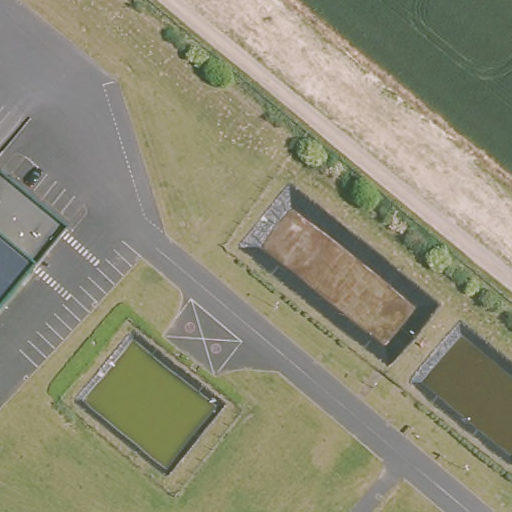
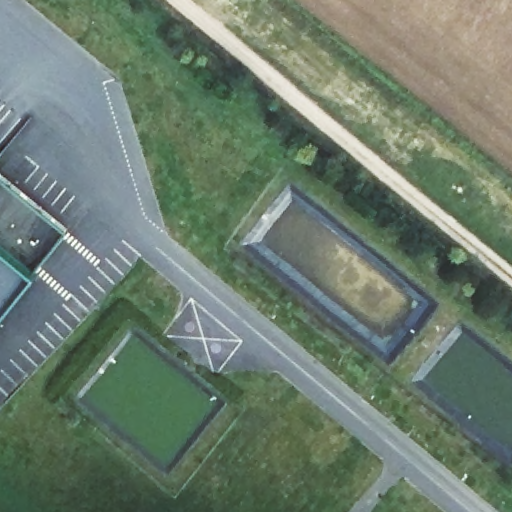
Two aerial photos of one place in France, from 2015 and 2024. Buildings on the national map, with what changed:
unchanged [(32,272),(0,310),(0,178),(64,229),(32,272)]

